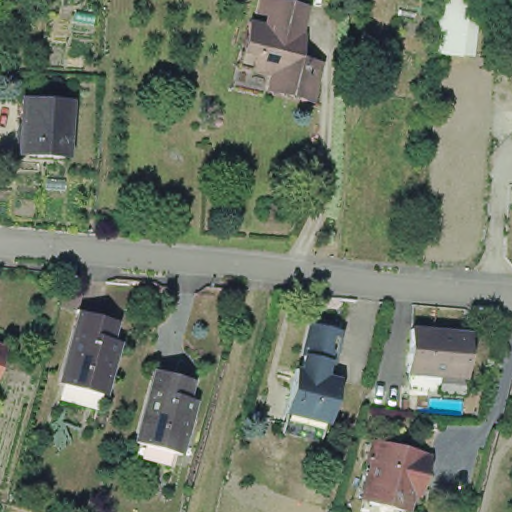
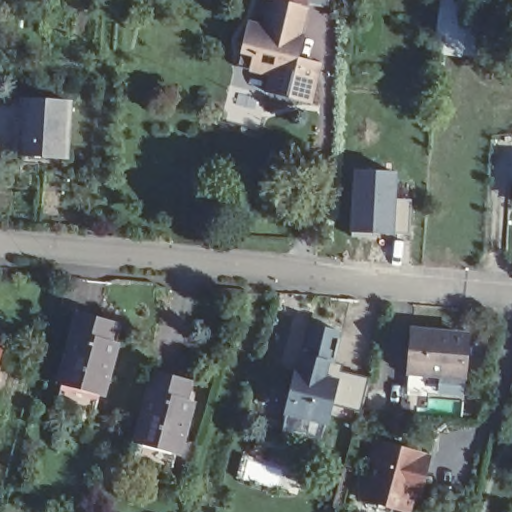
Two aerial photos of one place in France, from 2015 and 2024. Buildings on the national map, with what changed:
unchanged [(230,51),(237,22),(254,26),(257,15),(247,12),(250,0),(267,0),(295,7),(288,35),(292,36),(286,58),(308,64),(299,102),(256,92),(260,74),(240,69),(227,66),(230,51)]
unchanged [(17,144),(21,89),(67,91),(68,92),(65,147),(63,147),(17,144)]
new [(398,170),(395,235),(349,235),(352,169),(398,170)]
unchanged [(82,395),(58,388),(62,373),(60,372),(78,302),(103,308),(115,312),(110,331),(118,333),(105,385),(101,384),(96,398),(82,395)]
unchanged [(335,331),(328,362),(324,361),(320,376),(333,378),(317,442),(277,432),(282,412),(280,412),(290,367),(295,368),(298,355),(296,354),(303,323),(335,331)]
unchanged [(475,373),(462,373),(463,410),(397,407),(403,325),(477,328),(475,373)]
unchanged [(148,447),(140,445),(144,432),(142,431),(161,361),(172,363),(197,371),(192,389),(200,392),(185,444),(182,442),(178,456),(148,447)]
unchanged [(403,487),(399,507),(353,495),(362,460),(360,459),(366,436),(414,448),(413,451),(420,453),(413,482),(411,489),(403,487)]

